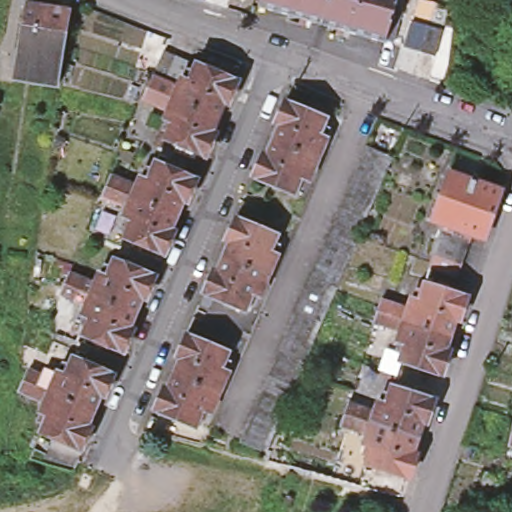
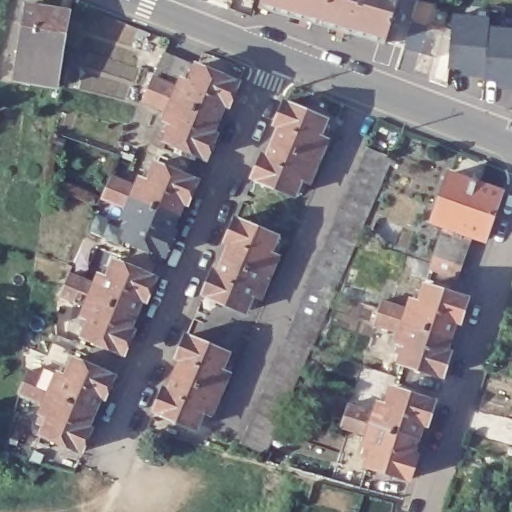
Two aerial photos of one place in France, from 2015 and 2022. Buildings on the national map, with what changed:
unchanged [(260,0),(324,0),(319,17),(260,0)]
unchanged [(384,34),(383,35),(319,17),(324,0),(393,0),(392,2),(400,5),(390,36),(384,34)]
unchanged [(22,31),(27,1),(30,1),(42,4),(42,2),(72,7),(65,52),(60,84),(15,76),(20,45),(22,31)]
new [(490,25),(512,26),(512,89),(487,87),(487,80),(450,77),(453,14),(491,15),(490,25)]
unchanged [(415,23),(446,33),(437,60),(407,50),(415,23)]
unchanged [(146,102),(151,91),(156,79),(158,73),(165,58),(167,52),(182,58),(195,64),(200,66),(242,83),(238,92),(235,97),(232,107),(227,105),(222,118),(215,134),(220,136),(216,144),(213,151),(210,159),(168,141),(171,134),(167,132),(171,122),(168,122),(172,112),(146,102)]
unchanged [(330,140),(320,161),(277,143),(283,127),(279,126),(289,102),(329,120),(327,127),(331,129),(327,139),(330,140)]
unchanged [(265,382),(270,369),(276,355),(282,342),(287,330),(292,317),(298,303),(303,291),(308,279),(314,267),(319,255),(325,242),(330,230),(337,212),(343,199),(348,187),(353,176),(358,162),(364,151),(370,138),(395,149),(389,162),(384,174),(378,186),(373,198),(368,210),(362,223),(360,227),(355,241),(350,253),(345,266),(339,277),(337,282),(334,290),(329,302),(323,315),(317,327),(313,337),(312,340),(307,353),(301,366),(295,379),(290,392),(290,393),(285,405),(278,418),(273,431),(267,444),(242,433),(248,420),(253,407),(259,394),(265,382)]
unchanged [(300,189),(297,196),(257,179),(266,156),(270,157),(277,143),(320,161),(312,182),(310,181),(305,191),(300,189)]
unchanged [(105,195),(110,183),(115,172),(140,182),(144,174),(147,175),(151,164),(155,166),(158,159),(200,176),(197,184),(195,190),(191,199),(187,197),(180,211),(173,226),(178,229),(175,237),(172,242),(168,252),(127,234),(130,227),(125,225),(129,216),(126,215),(130,206),(105,195)]
unchanged [(428,258),(430,252),(435,239),(439,227),(440,221),(430,217),(446,169),(497,187),(498,187),(482,236),(471,232),(469,237),(465,250),(460,262),(455,276),(426,266),(428,258)]
unchanged [(277,257),(280,257),(272,277),(228,258),(234,245),(230,242),(239,220),(280,237),(277,244),(282,246),(277,257)]
unchanged [(85,312),(89,302),(63,292),(67,283),(68,280),(73,269),(98,280),(103,270),(106,272),(110,262),(114,263),(117,256),(160,273),(155,282),(153,287),(150,296),(145,294),(138,308),(132,323),(137,326),(133,334),(131,340),(127,348),(86,332),(88,326),(83,324),(88,313),(85,312)]
unchanged [(247,312),(207,295),(217,272),(222,274),(228,258),(272,277),(262,298),(260,297),(255,307),(251,305),(247,312)]
unchanged [(399,338),(402,330),(375,321),(379,308),(381,303),(383,296),(410,305),(412,296),(416,297),(419,287),(425,288),(427,281),(469,293),(462,318),(457,317),(452,332),(447,347),(452,348),(444,373),(402,359),(404,352),(398,351),(402,340),(399,338)]
unchanged [(228,372),(231,373),(222,394),(178,376),(185,361),(180,359),(190,336),(230,353),(227,361),(232,362),(228,372)]
unchanged [(92,432),(90,437),(87,446),(46,429),(49,421),(43,418),(47,409),(45,408),(49,400),(22,388),(27,377),(32,365),(59,377),(63,368),(65,368),(68,358),(75,361),(77,353),(118,371),(115,379),(112,385),(109,393),(105,391),(98,406),(92,422),(96,423),(92,432)]
unchanged [(202,422),(198,429),(157,412),(167,388),(172,391),(178,376),(222,394),(214,415),(210,413),(207,423),(202,422)]
unchanged [(367,442),(370,432),(342,423),(345,416),(347,411),(350,400),(377,408),(380,399),(382,400),(387,390),(392,391),(394,383),(437,397),(429,421),(425,420),(420,435),(415,450),(419,452),(412,476),(370,462),(372,455),(367,453),(370,442),(367,442)]
unchanged [(508,431),(512,413),(512,444),(506,442),(508,431)]

